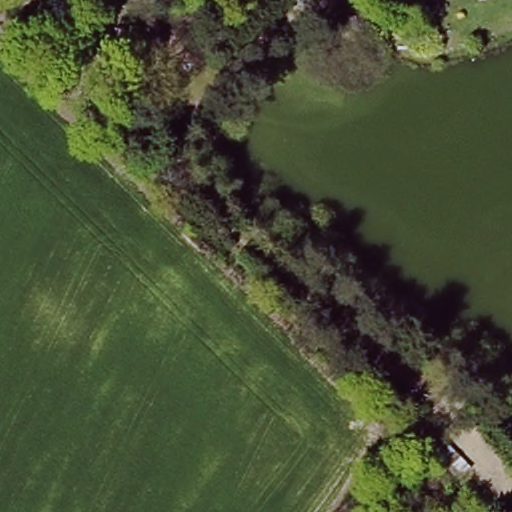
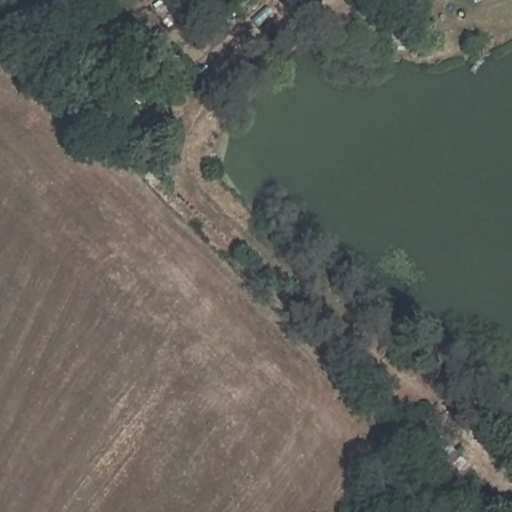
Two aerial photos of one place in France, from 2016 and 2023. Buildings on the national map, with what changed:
unchanged [(425,420),(452,449),(438,462),(410,432),(425,420)]

